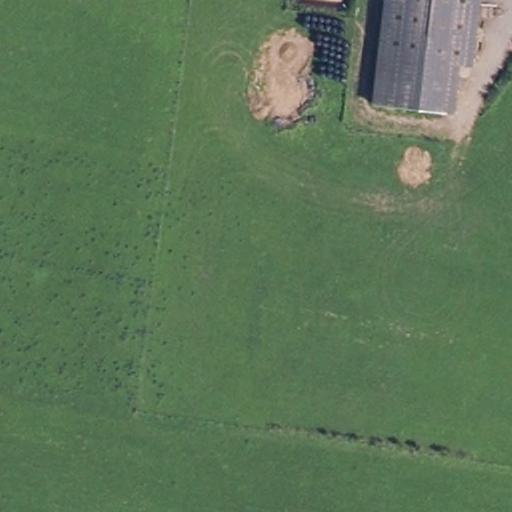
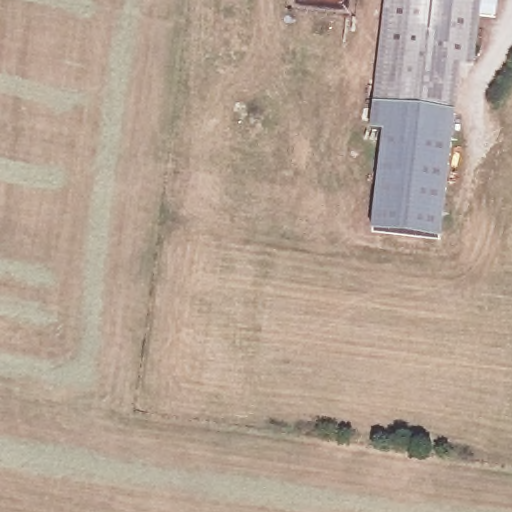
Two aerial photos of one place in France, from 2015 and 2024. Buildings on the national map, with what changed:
unchanged [(472,74),(448,70),(380,62),(388,0),(482,0),(472,74)]
unchanged [(380,62),(448,70),(446,89),(442,120),(373,111),(380,62)]
new [(373,111),(442,120),(446,89),(448,70),(461,72),(443,236),(372,229),(383,133),(371,130),(373,111)]

